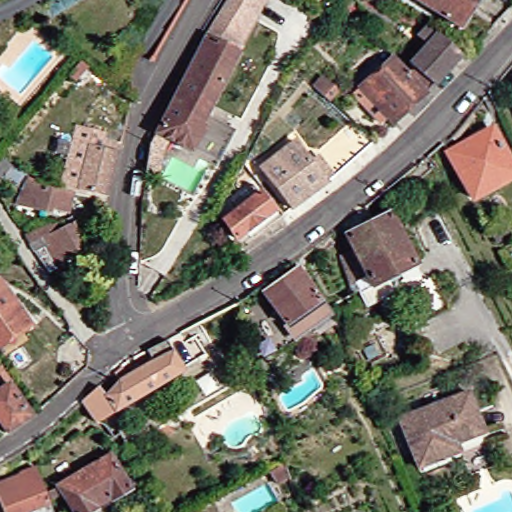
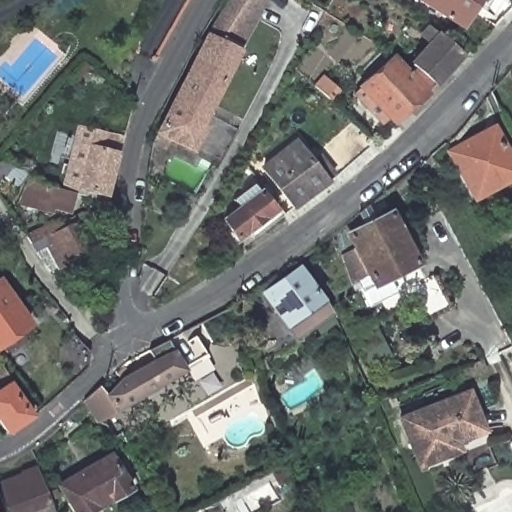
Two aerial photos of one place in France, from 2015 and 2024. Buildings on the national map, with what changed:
unchanged [(198,126),(201,128),(187,153),(161,139),(156,149),(146,143),(190,60),(202,36),(223,0),(258,0),(261,2),(198,126)]
unchanged [(450,28),(407,0),(468,0),(450,28)]
unchanged [(438,34),(462,56),(434,87),(410,66),(429,45),(420,37),(428,28),(437,36),(438,34)]
unchanged [(410,66),(434,87),(392,124),(394,126),(373,145),(354,125),(346,118),(370,98),(361,88),(396,57),(410,66)]
unchanged [(338,93),(330,102),(314,87),(322,79),(338,93)]
unchanged [(116,144),(102,197),(73,189),(56,183),(66,145),(69,146),(73,127),(80,129),(83,119),(94,122),(90,138),(116,144)]
unchanged [(295,142),(311,162),(354,125),(373,145),(328,184),(284,217),(252,175),(295,142)]
unchanged [(483,130),(508,175),(464,199),(441,154),(483,130)]
unchanged [(0,154),(22,175),(11,186),(1,176),(0,176),(0,154)]
unchanged [(71,195),(101,202),(97,213),(87,214),(80,217),(69,223),(26,245),(21,237),(47,224),(46,212),(13,204),(25,178),(71,195)]
unchanged [(273,212),(236,241),(224,221),(260,194),(273,212)]
unchanged [(412,265),(367,286),(363,277),(345,287),(335,256),(349,249),(338,226),(358,209),(365,224),(386,213),(412,265)]
unchanged [(59,280),(54,269),(45,274),(26,245),(69,223),(86,253),(72,260),(78,271),(59,280)]
unchanged [(311,300),(278,324),(256,294),(288,270),(311,300)]
unchanged [(424,323),(406,289),(434,275),(452,309),(424,323)]
unchanged [(24,325),(0,341),(0,289),(24,325)]
unchanged [(201,331),(212,349),(175,372),(87,424),(74,403),(72,401),(88,387),(96,396),(110,381),(104,373),(110,368),(118,376),(143,362),(137,351),(157,341),(163,351),(201,331)]
unchanged [(26,412),(2,428),(0,426),(0,383),(4,380),(26,412)]
unchanged [(480,433),(453,444),(456,451),(414,467),(396,419),(465,393),(480,433)]
unchanged [(127,484),(107,497),(105,495),(92,503),(93,504),(79,512),(71,512),(53,482),(106,450),(127,484)]
unchanged [(43,512),(20,512),(0,512),(0,480),(12,476),(11,474),(27,468),(41,505),(43,512)]

